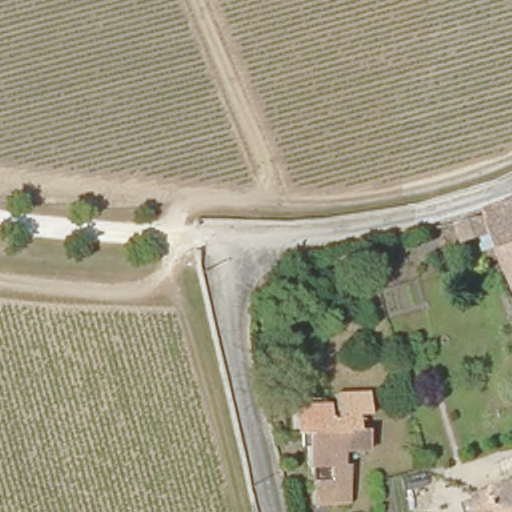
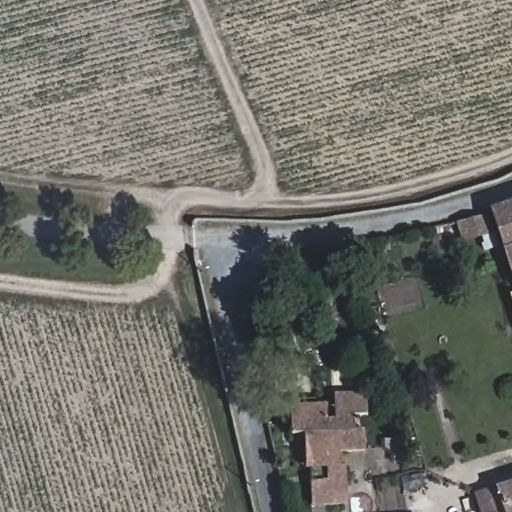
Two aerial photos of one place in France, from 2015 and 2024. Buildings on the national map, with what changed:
unchanged [(501,212),(512,208),(512,253),(507,255),(495,214),(501,212)]
unchanged [(465,241),(459,222),(489,215),(495,234),(465,241)]
unchanged [(512,253),(512,270),(507,255),(512,253)]
unchanged [(318,505),(317,471),(310,471),(307,437),(294,436),(292,409),(328,407),(327,412),(335,411),(335,395),(363,393),(365,416),(358,417),(360,431),(345,433),(352,503),(351,503),(318,505)]
unchanged [(478,500),(512,487),(512,512),(482,512),(478,500)]

